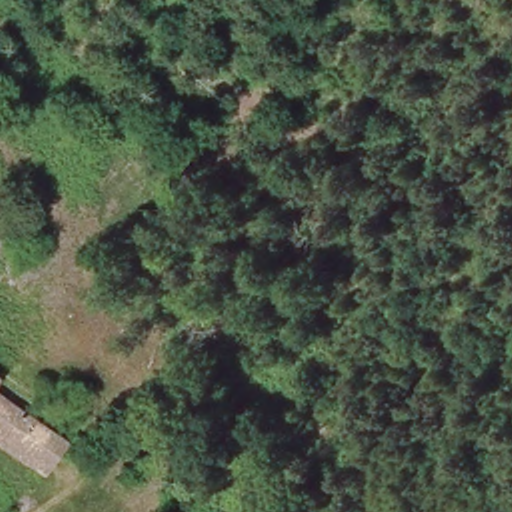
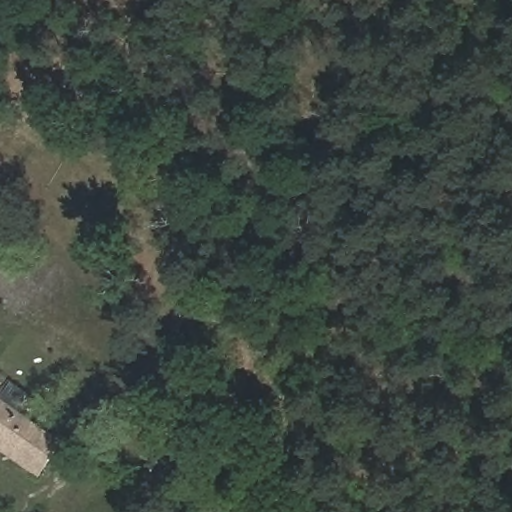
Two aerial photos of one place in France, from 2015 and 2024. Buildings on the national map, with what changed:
unchanged [(0,397),(58,437),(49,451),(68,467),(54,486),(0,449),(0,397)]

